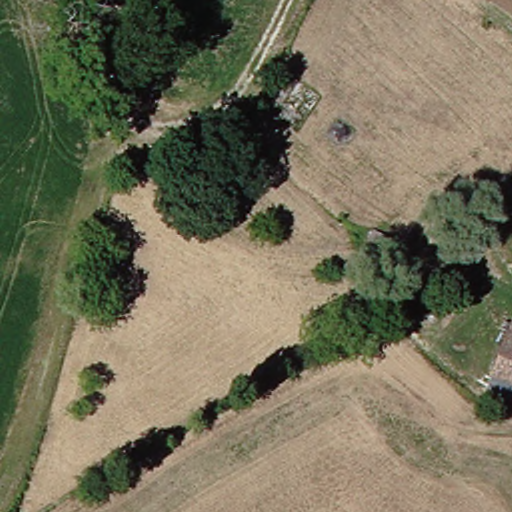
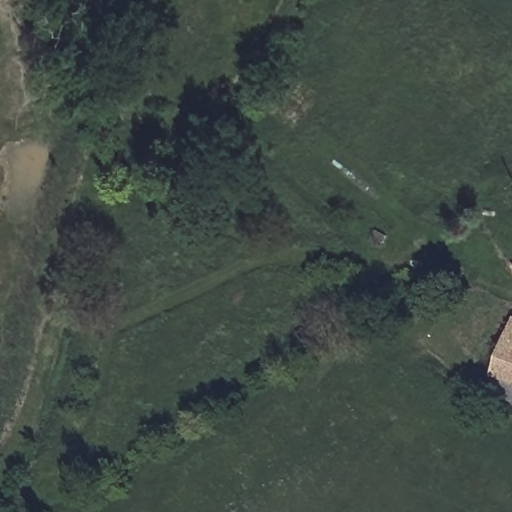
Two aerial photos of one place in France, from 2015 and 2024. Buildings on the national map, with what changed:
unchanged [(490,394),(497,377),(512,341),(512,401),(490,394)]

